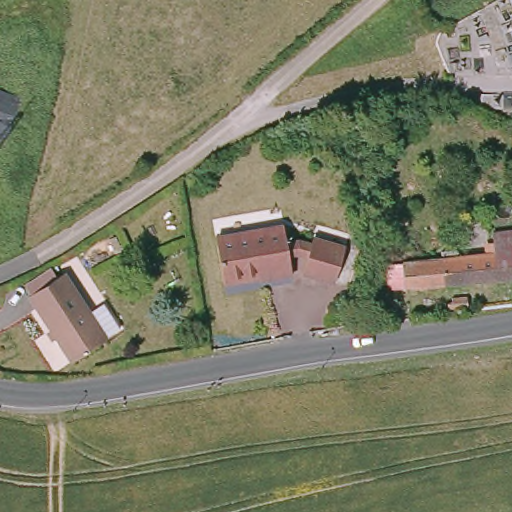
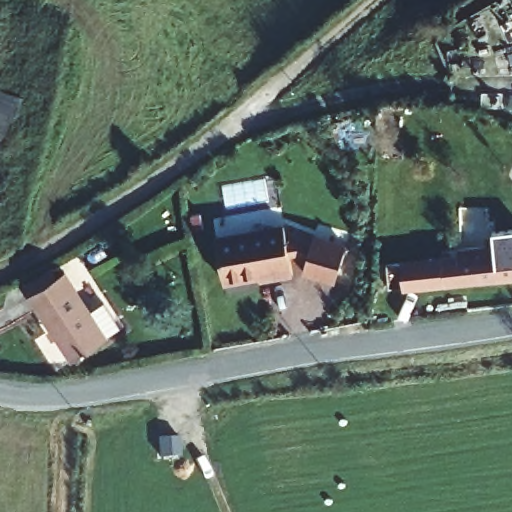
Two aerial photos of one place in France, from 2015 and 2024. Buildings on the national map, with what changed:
unchanged [(4,145),(0,144),(0,88),(20,94),(4,145)]
unchanged [(333,279),(326,277),(302,271),(307,252),(295,250),(285,251),(290,272),(283,274),(247,229),(281,223),(284,240),(295,236),(309,241),(310,235),(327,240),(342,244),(333,279)]
unchanged [(270,276),(269,271),(220,280),(212,235),(247,229),(283,274),(270,276)]
unchanged [(385,283),(383,258),(438,255),(437,248),(453,247),(454,254),(492,252),(491,241),(490,230),(512,229),(512,277),(495,277),(385,283)]
unchanged [(70,360),(26,295),(61,271),(105,336),(70,360)]

